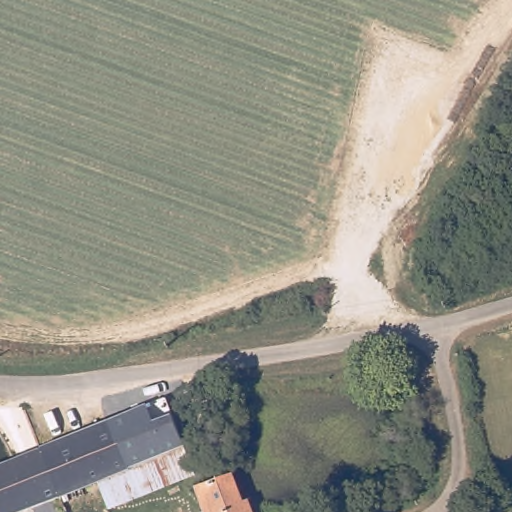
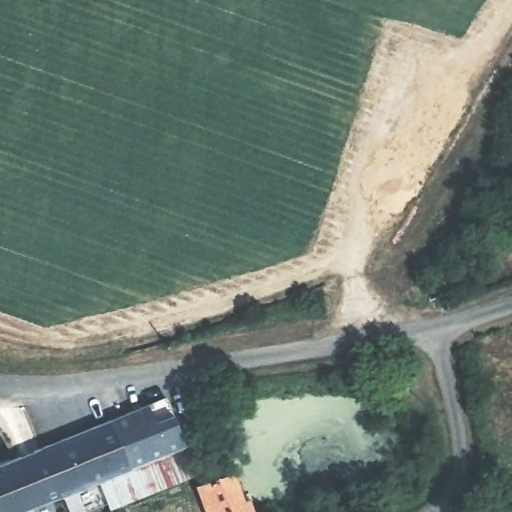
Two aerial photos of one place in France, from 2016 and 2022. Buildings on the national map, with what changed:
unchanged [(431,285),(439,300),(432,307),(420,292),(431,285)]
unchanged [(184,443),(169,449),(127,466),(111,417),(167,394),(184,443)]
unchanged [(127,466),(100,477),(66,491),(45,443),(111,417),(127,466)]
unchanged [(0,510),(0,461),(13,456),(45,443),(66,491),(33,506),(17,512),(1,512),(0,510)]
unchanged [(194,468),(194,469),(110,504),(100,477),(127,466),(169,449),(184,443),(194,468)]
unchanged [(239,499),(246,497),(250,506),(252,512),(209,512),(199,483),(230,473),(239,499)]

